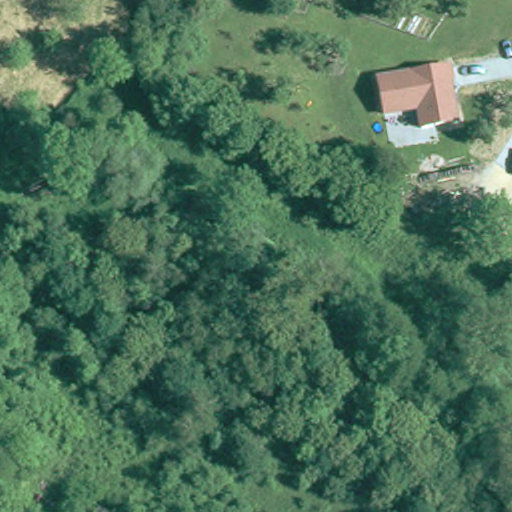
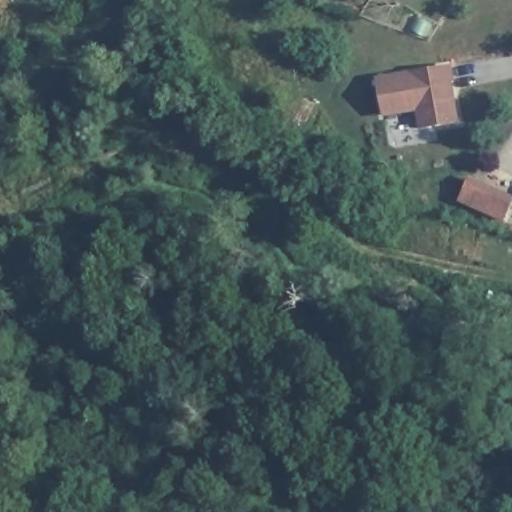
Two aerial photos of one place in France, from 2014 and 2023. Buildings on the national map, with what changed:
unchanged [(459,124),(422,129),(418,112),(380,118),(375,80),(450,67),(459,124)]
new [(512,196),(512,204),(504,221),(457,202),(468,176),(512,196)]

